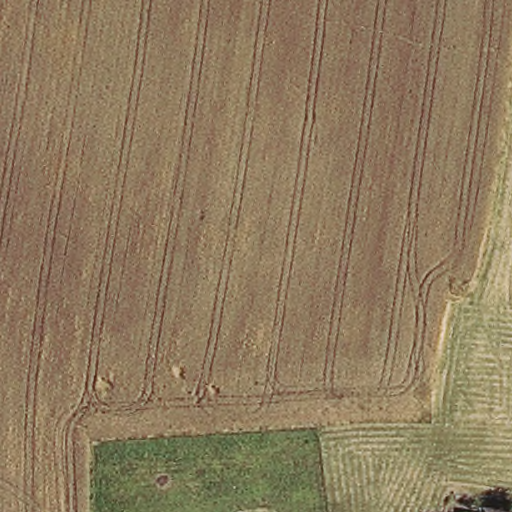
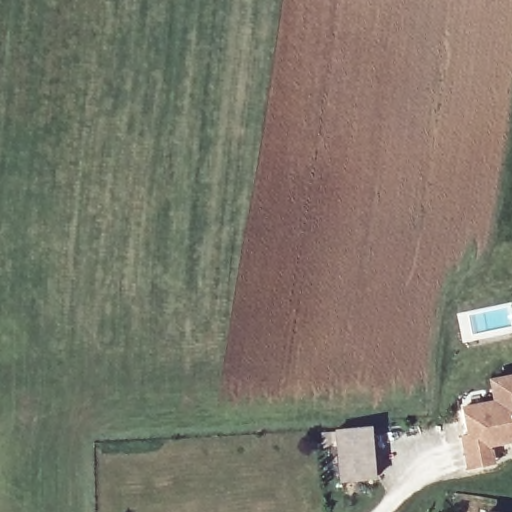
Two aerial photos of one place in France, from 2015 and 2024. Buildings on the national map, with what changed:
new [(496,465),(467,470),(461,436),(466,435),(460,406),(491,400),(488,380),(512,375),(512,444),(493,448),(496,465)]
new [(370,428),(374,480),(339,483),(334,431),(370,428)]

